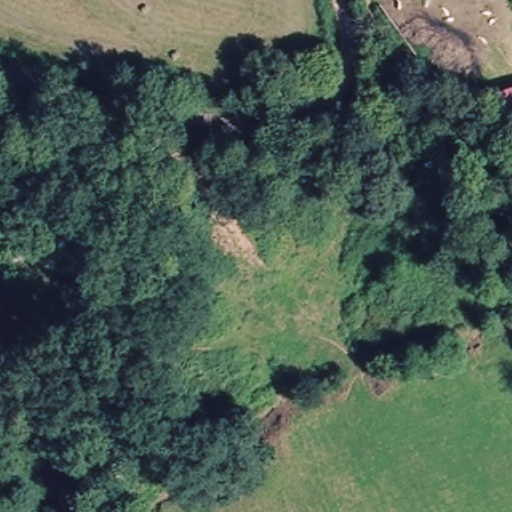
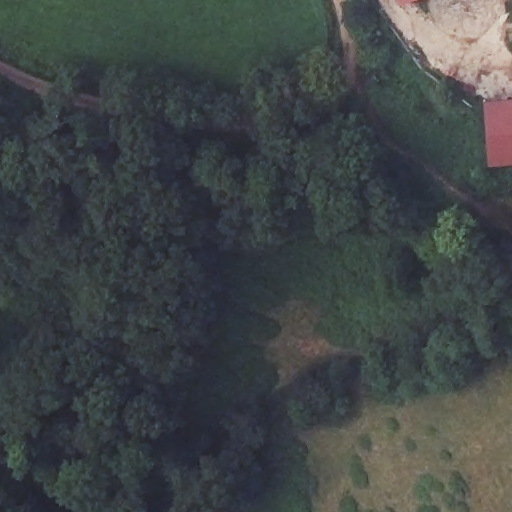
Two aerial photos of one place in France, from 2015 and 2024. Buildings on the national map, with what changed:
unchanged [(401,2),(400,0),(405,0),(401,2)]
demolished [(494,133),(481,104),(512,94),(512,126),(494,133)]
new [(484,98),(512,96),(512,158),(487,159),(484,98)]

